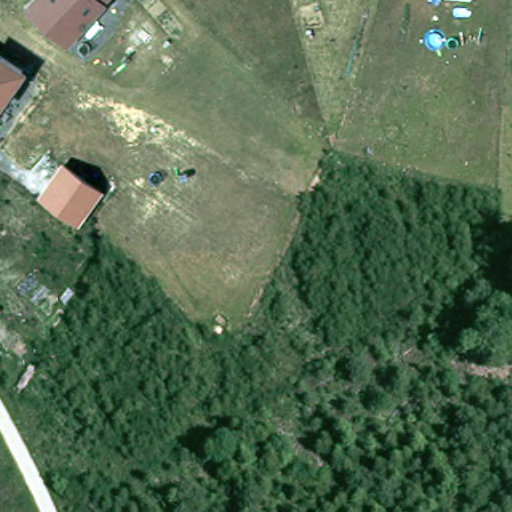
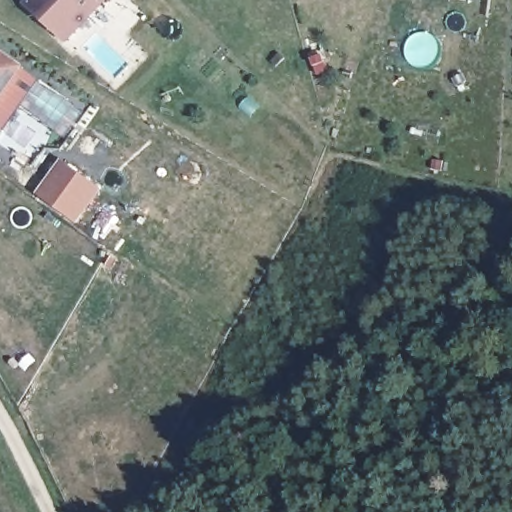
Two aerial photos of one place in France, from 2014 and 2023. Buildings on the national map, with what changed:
unchanged [(25,0),(105,0),(105,1),(66,41),(23,2),(25,0)]
unchanged [(25,67),(0,104),(0,48),(25,67)]
unchanged [(103,190),(78,224),(38,195),(62,159),(103,190)]

